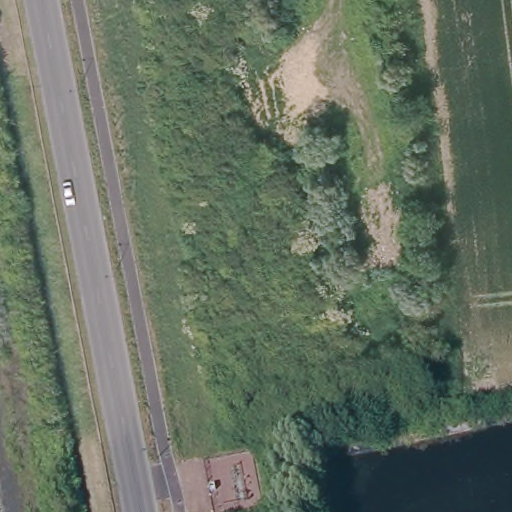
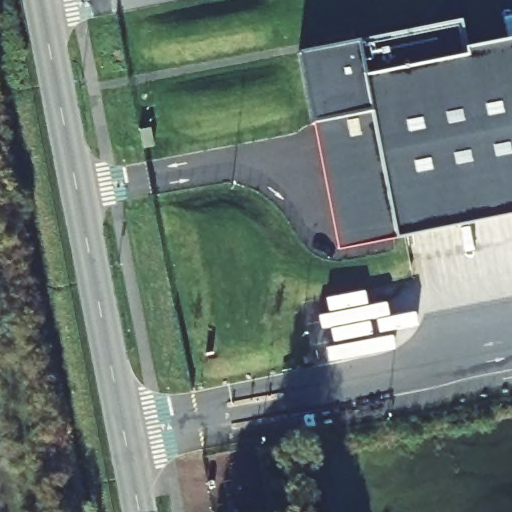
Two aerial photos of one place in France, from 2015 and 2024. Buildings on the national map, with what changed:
new [(465,47),(512,37),(512,217),(341,251),(301,52),(459,21),(465,47)]

